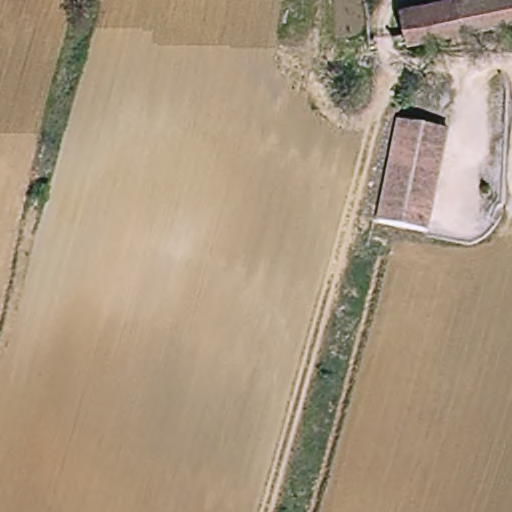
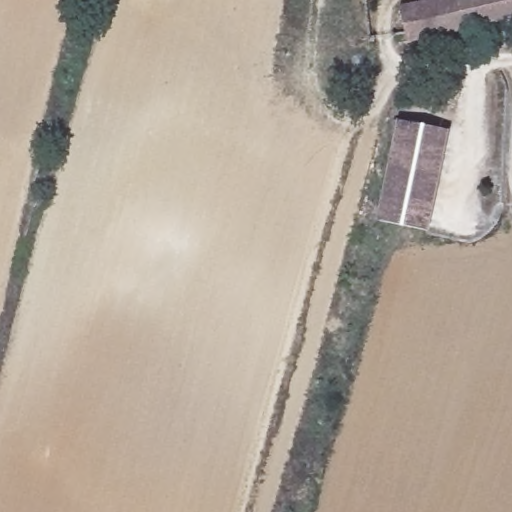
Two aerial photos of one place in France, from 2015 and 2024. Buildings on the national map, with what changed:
unchanged [(405,42),(398,9),(439,0),(460,0),(465,30),(405,42)]
unchanged [(465,30),(460,0),(512,0),(512,20),(465,30)]
unchanged [(446,130),(424,232),(372,222),(395,119),(446,130)]

